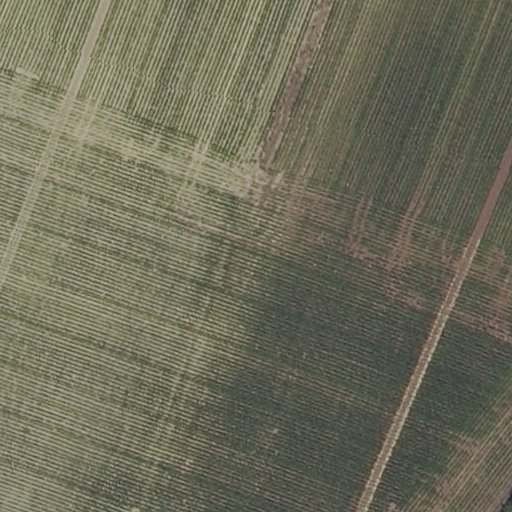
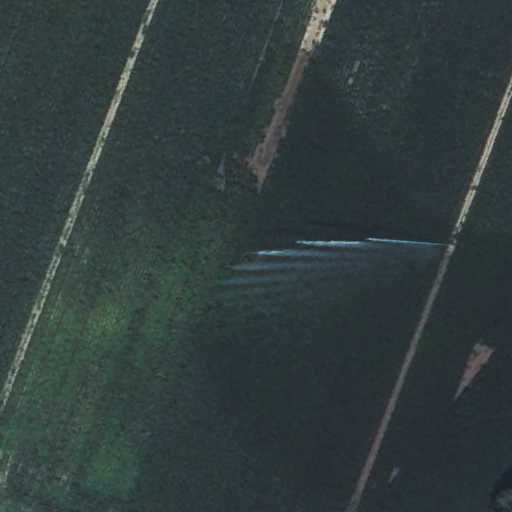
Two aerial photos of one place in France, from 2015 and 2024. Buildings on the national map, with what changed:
[]

